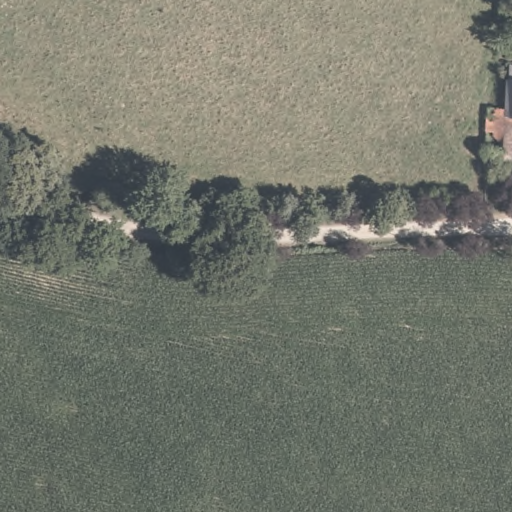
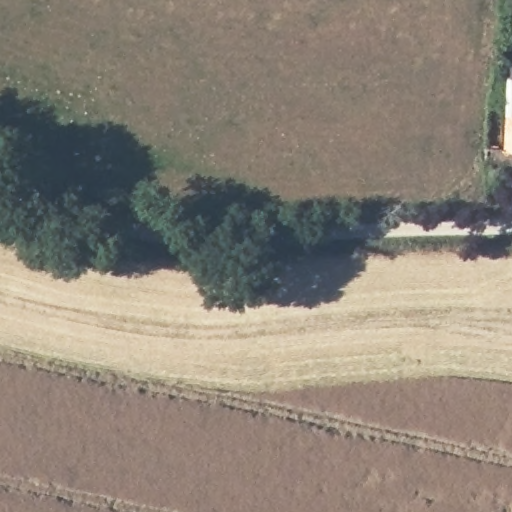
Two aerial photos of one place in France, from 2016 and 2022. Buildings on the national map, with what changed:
unchanged [(505,74),(512,74),(512,171),(485,171),(485,142),(487,102),(504,102),(505,74)]

